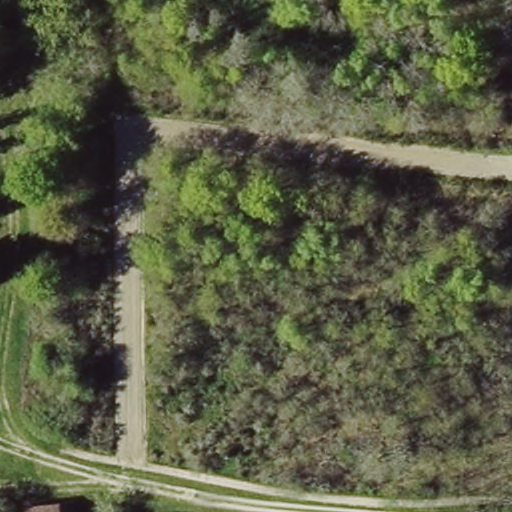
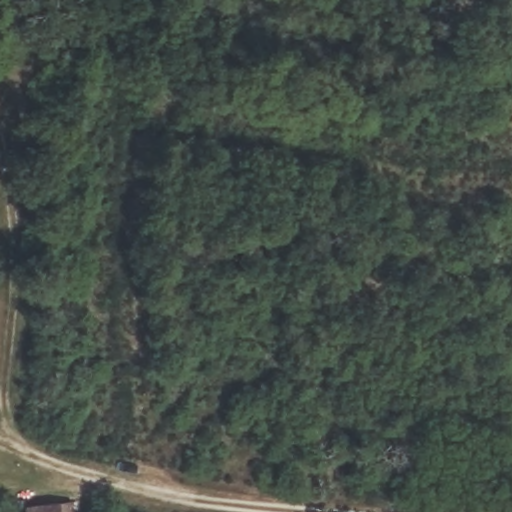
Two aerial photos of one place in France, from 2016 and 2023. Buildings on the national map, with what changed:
unchanged [(70,502),(72,512),(26,512),(25,507),(70,502)]

